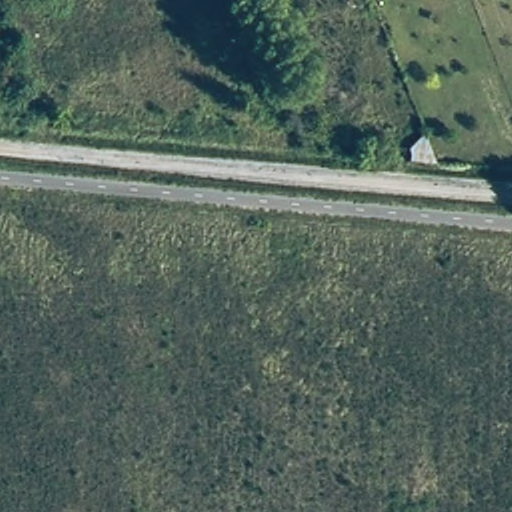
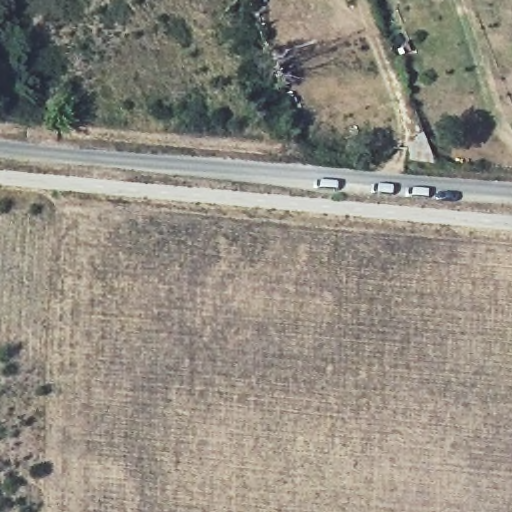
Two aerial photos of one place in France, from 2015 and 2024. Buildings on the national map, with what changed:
unchanged [(422,133),(432,161),(409,161),(405,147),(422,133)]

